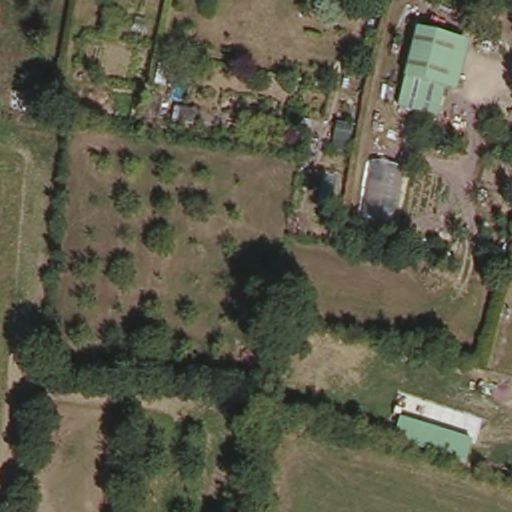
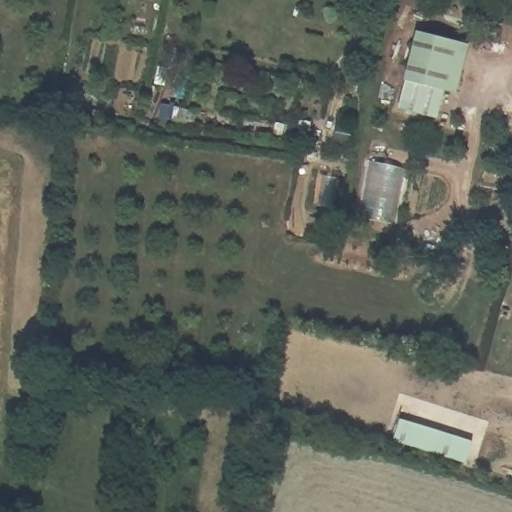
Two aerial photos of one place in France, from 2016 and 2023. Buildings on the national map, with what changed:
unchanged [(441,90),(404,82),(417,31),(453,40),(441,90)]

